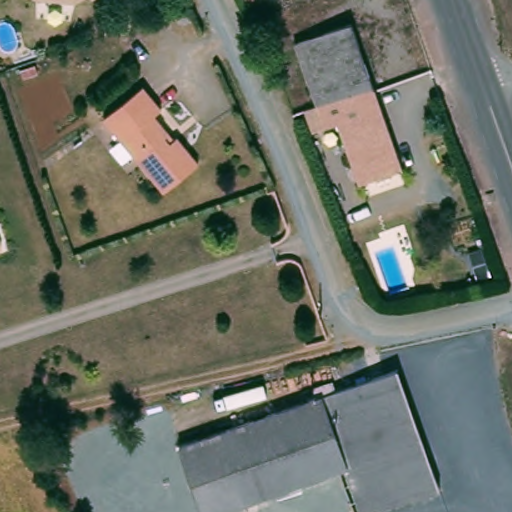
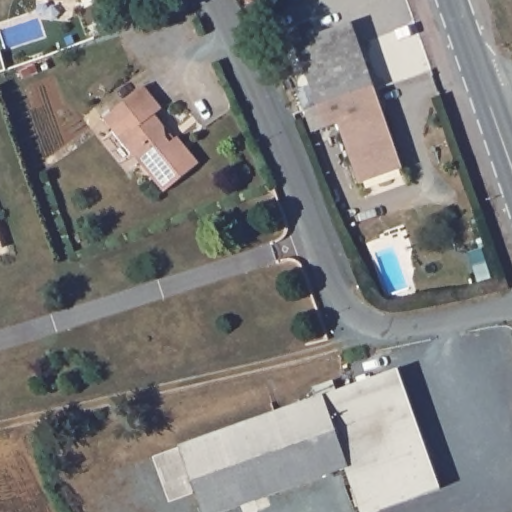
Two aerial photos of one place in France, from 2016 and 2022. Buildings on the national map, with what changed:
unchanged [(56,0),(82,0),(79,1),(56,0)]
unchanged [(242,8),(237,0),(260,0),(260,2),(242,8)]
unchanged [(350,98),(348,91),(319,101),(297,40),(355,18),(380,88),(350,98)]
unchanged [(168,106),(160,112),(182,137),(186,134),(208,160),(171,193),(110,120),(150,85),(168,106)]
unchanged [(348,91),(350,98),(380,88),(410,171),(365,186),(341,120),(327,124),(319,101),(348,91)]
unchanged [(9,247),(0,251),(0,224),(9,247)]
unchanged [(187,439),(393,365),(439,486),(365,512),(364,512),(345,458),(211,507),(187,439)]

